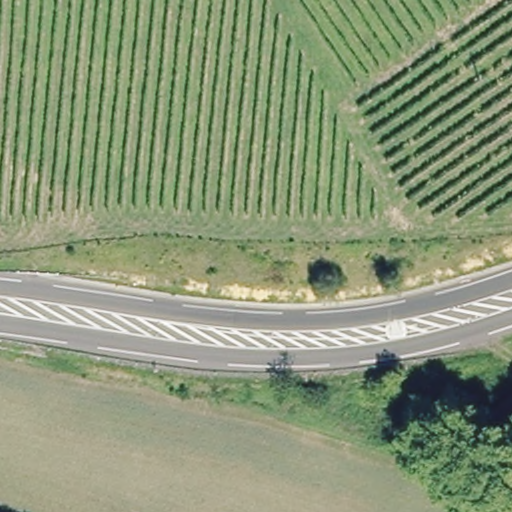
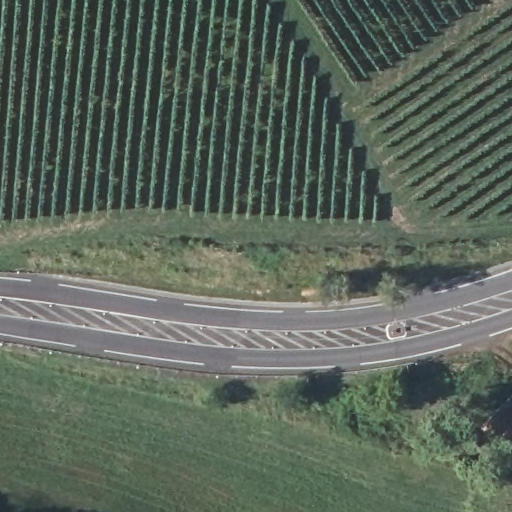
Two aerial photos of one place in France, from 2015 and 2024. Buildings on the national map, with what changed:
unchanged [(507,448),(485,429),(512,397),(512,442),(507,448)]

